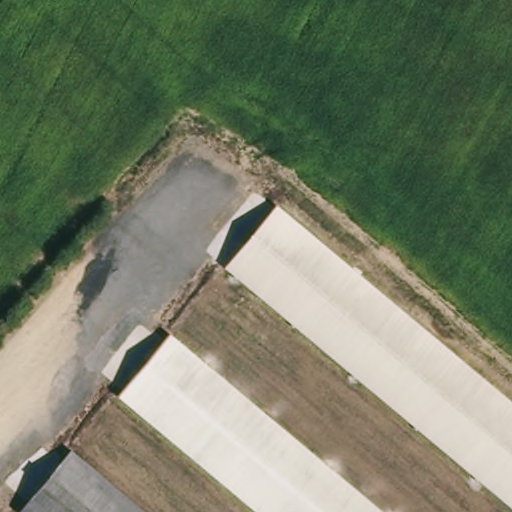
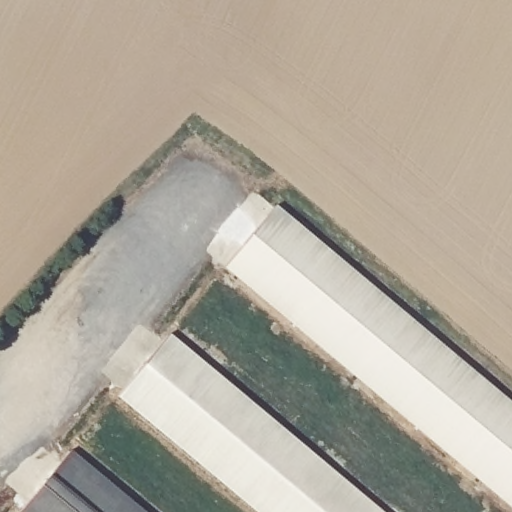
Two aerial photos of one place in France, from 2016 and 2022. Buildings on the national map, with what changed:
unchanged [(280,204),(512,400),(512,507),(225,267),(280,204)]
unchanged [(379,512),(251,512),(118,409),(166,347),(379,512)]
unchanged [(58,460),(126,512),(18,512),(58,460)]

